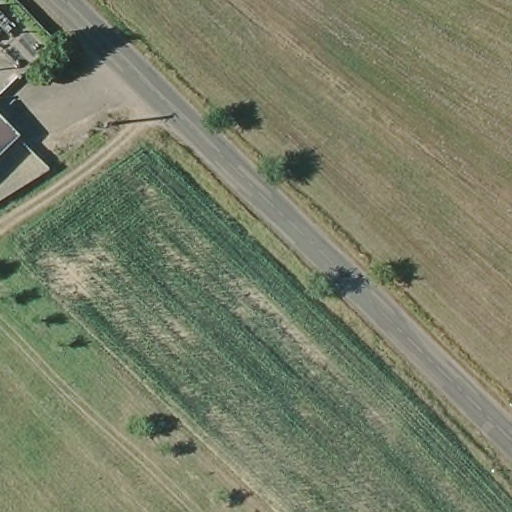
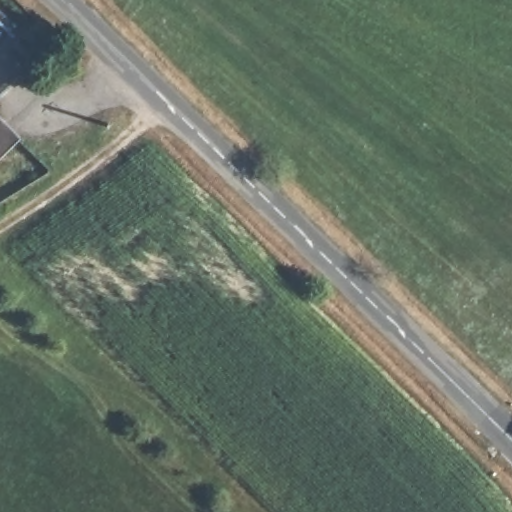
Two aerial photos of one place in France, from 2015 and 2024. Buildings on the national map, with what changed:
unchanged [(0,161),(0,115),(23,138),(0,161)]

